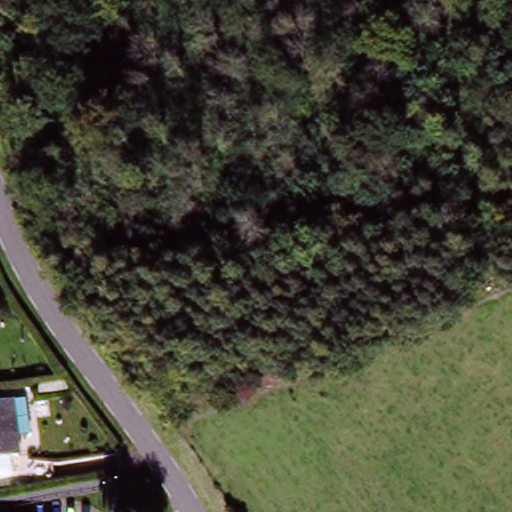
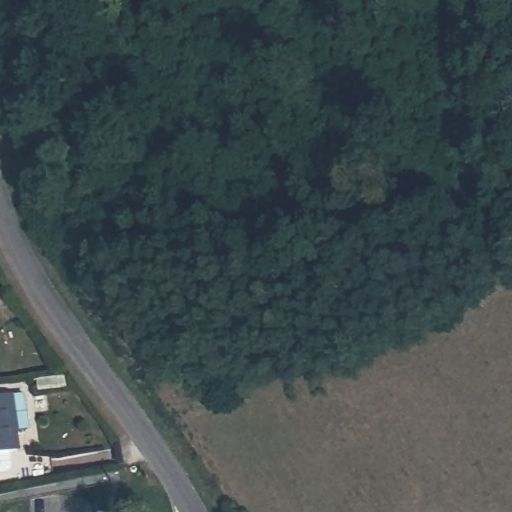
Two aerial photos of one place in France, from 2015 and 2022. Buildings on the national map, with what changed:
unchanged [(0,399),(9,398),(13,401),(19,431),(16,435),(5,436),(7,455),(0,456),(3,471),(0,475),(0,399)]

